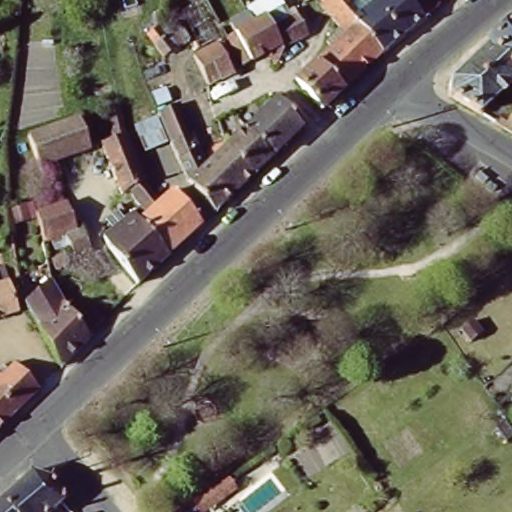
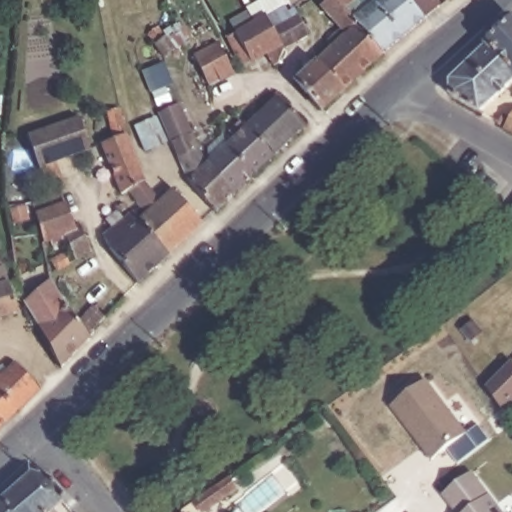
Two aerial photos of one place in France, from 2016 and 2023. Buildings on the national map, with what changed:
unchanged [(342,33),(322,10),(333,0),(353,0),(357,3),(345,13),(355,24),(383,58),(344,94),(317,66),(334,52),(328,46),(342,33)]
unchanged [(440,11),(425,24),(383,58),(355,24),(371,10),(384,0),(430,0),(440,11)]
unchanged [(445,0),(454,0),(449,4),(445,0)]
unchanged [(284,54),(279,68),(275,70),(267,57),(244,71),(227,42),(237,37),(231,28),(250,17),(255,26),(267,20),(284,10),(290,23),(298,19),(309,39),(284,53),(285,54),(284,54)]
unchanged [(164,55),(148,34),(158,26),(175,47),(164,55)]
unchanged [(494,45),(512,28),(512,64),(494,45)]
unchanged [(181,54),(177,50),(175,47),(179,43),(182,47),(185,51),(181,54)]
unchanged [(512,64),(512,88),(485,112),(455,95),(455,80),(494,45),(512,64)]
unchanged [(234,77),(210,90),(195,60),(220,47),(234,77)]
unchanged [(344,94),(322,115),(296,86),(317,66),(344,94)]
unchanged [(185,185),(184,183),(175,163),(167,147),(167,148),(155,121),(137,126),(129,98),(142,93),(154,118),(170,111),(172,110),(172,109),(174,109),(195,154),(202,170),(205,167),(222,150),(241,132),(269,161),(250,180),(232,197),(211,216),(185,186),(185,185)]
unchanged [(301,130),(269,161),(241,132),(242,131),(274,101),(301,130)]
unchanged [(126,139),(145,186),(145,187),(130,195),(122,199),(102,148),(115,144),(109,116),(120,113),(126,139)]
unchanged [(500,132),(494,128),(498,121),(500,120),(505,124),(510,118),(512,117),(512,139),(500,132)]
unchanged [(92,154),(58,166),(64,181),(47,187),(30,141),(80,123),(92,154)]
unchanged [(203,228),(169,258),(142,225),(147,219),(142,212),(139,208),(130,195),(145,187),(162,206),(175,195),(203,228)]
unchanged [(29,220),(16,223),(12,210),(26,206),(29,220)]
unchanged [(128,214),(122,217),(119,211),(125,208),(128,214)]
unchanged [(70,232),(77,229),(88,254),(72,265),(61,240),(40,248),(33,219),(62,209),(70,232)]
unchanged [(147,219),(142,225),(169,258),(170,260),(139,289),(112,253),(105,241),(142,212),(147,219)]
unchanged [(10,282),(20,312),(0,318),(0,268),(5,266),(10,282)]
unchanged [(80,322),(94,306),(106,317),(90,335),(91,337),(62,367),(40,328),(25,303),(52,280),(66,302),(80,322)]
unchanged [(484,332),(472,342),(462,330),(474,320),(484,332)]
new [(512,363),(512,403),(509,406),(492,382),(512,363)]
unchanged [(0,390),(0,369),(4,365),(9,371),(16,364),(40,389),(19,410),(0,390)]
new [(427,380),(467,434),(432,460),(392,406),(427,380)]
unchanged [(0,428),(0,390),(19,410),(0,428)]
new [(472,472),(503,512),(457,512),(444,494),(472,472)]
unchanged [(238,479),(235,482),(239,488),(224,498),(216,486),(234,474),(238,479)]
unchanged [(59,507),(53,512),(1,512),(0,510),(0,502),(27,478),(45,483),(59,500),(59,507)]
unchanged [(0,512),(0,510),(1,512),(0,512)]

